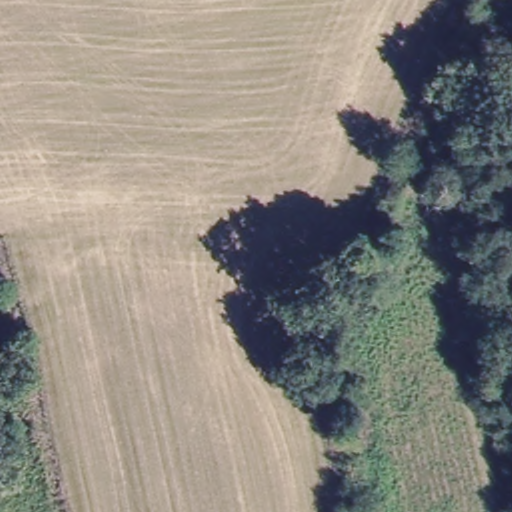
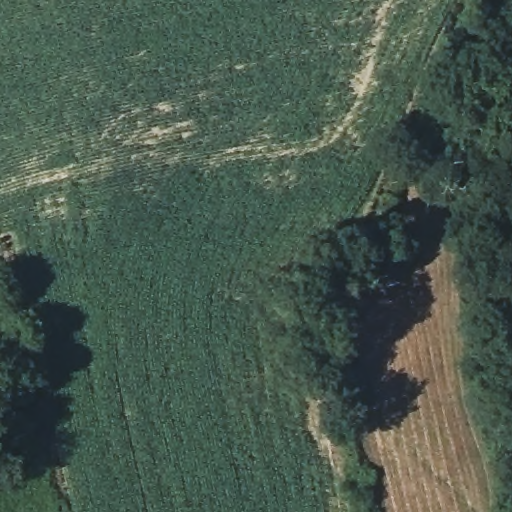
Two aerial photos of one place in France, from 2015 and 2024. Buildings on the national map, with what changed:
[]

